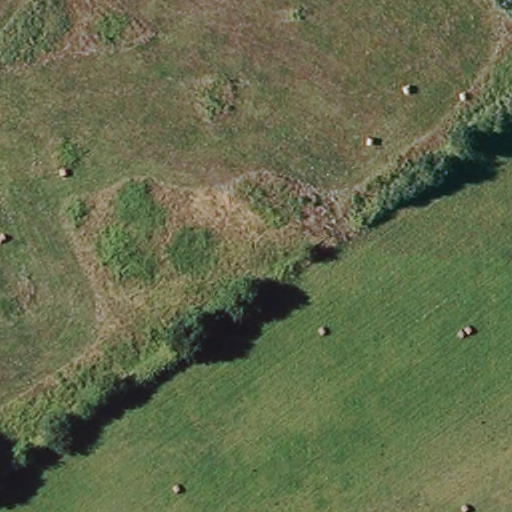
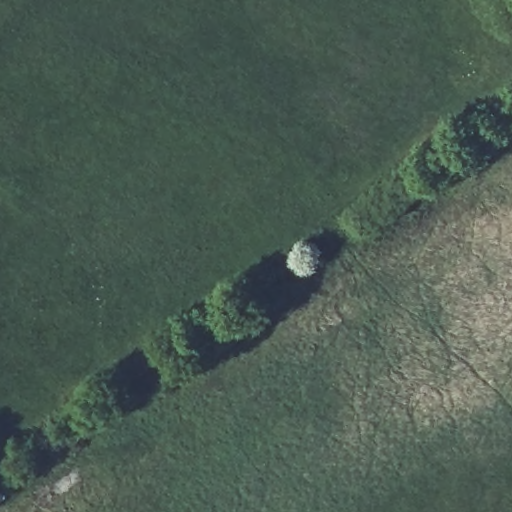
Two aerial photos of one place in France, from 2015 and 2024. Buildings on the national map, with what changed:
[]

